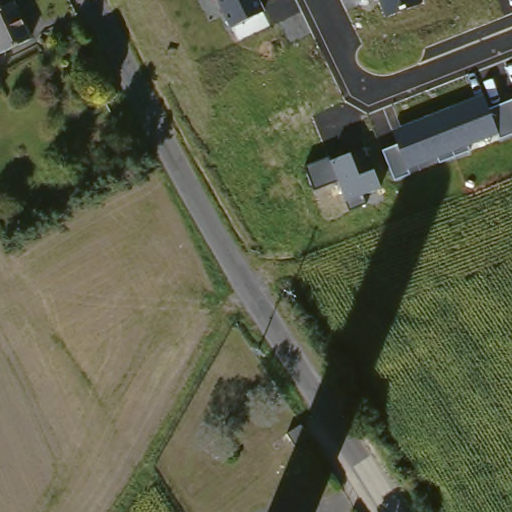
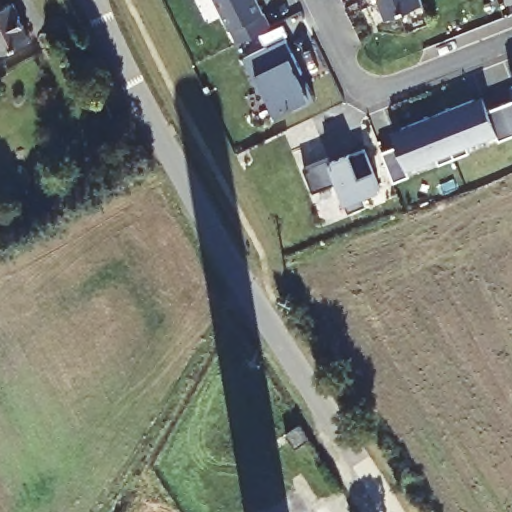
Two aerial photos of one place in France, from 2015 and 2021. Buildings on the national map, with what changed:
unchanged [(5,0),(9,0),(27,32),(0,47),(0,3),(5,0)]
unchanged [(218,0),(259,0),(265,11),(232,27),(218,0)]
unchanged [(380,0),(420,0),(422,2),(387,17),(380,0)]
new [(294,57),(313,98),(308,99),(276,114),(261,86),(259,89),(245,59),(285,38),(294,57)]
unchanged [(512,85),(512,88),(511,85),(512,85)]
unchanged [(498,135),(468,146),(470,152),(440,165),(437,160),(410,172),(410,175),(396,181),(383,151),(399,143),(395,132),(484,96),(489,109),(512,100),(512,135),(500,140),(498,135)]
unchanged [(363,196),(367,205),(349,210),(344,199),(338,183),(314,191),(306,170),(333,161),(365,150),(381,187),(363,196)]
unchanged [(309,450),(296,458),(286,442),(298,433),(309,450)]

